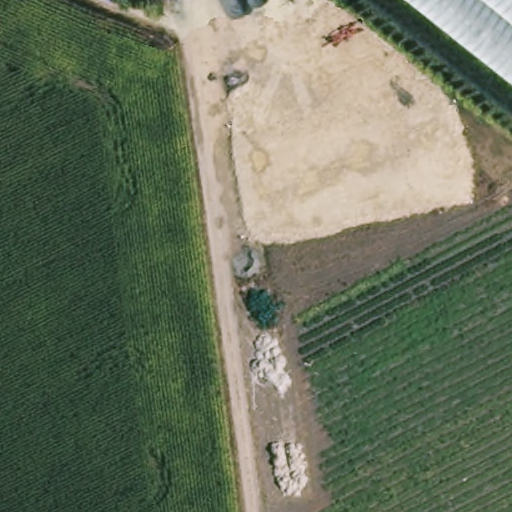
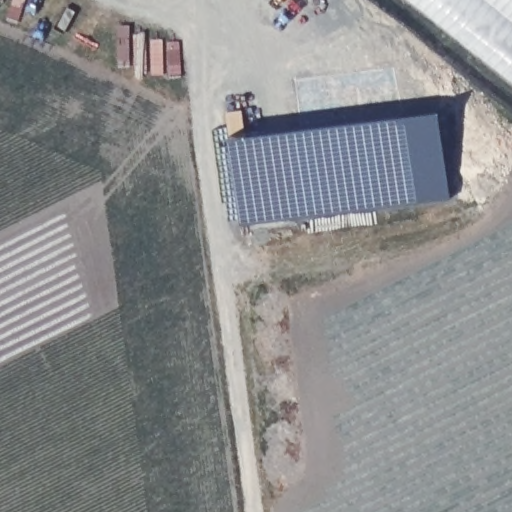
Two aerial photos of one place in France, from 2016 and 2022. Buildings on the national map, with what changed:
unchanged [(512,91),(395,0),(512,0),(512,91)]
new [(450,199),(241,222),(231,134),(439,108),(450,199)]

